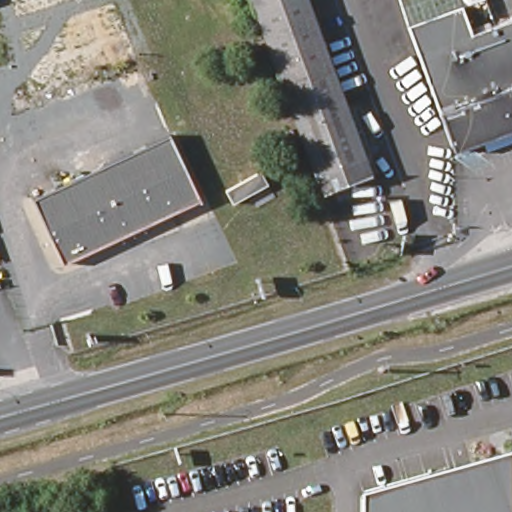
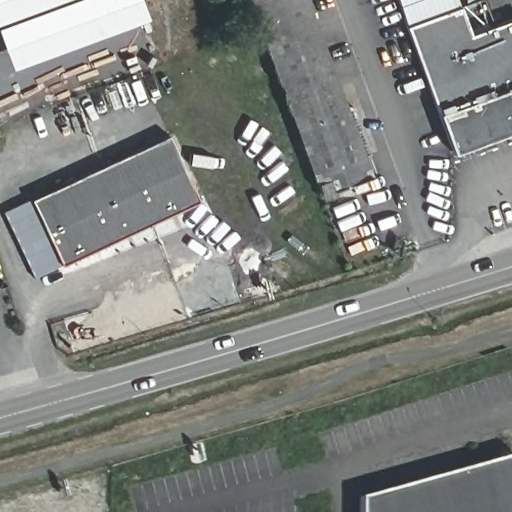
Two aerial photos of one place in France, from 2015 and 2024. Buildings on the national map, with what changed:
new [(0,36),(0,0),(140,0),(146,17),(11,67),(0,36)]
unchanged [(370,164),(323,181),(257,0),(311,0),(370,164)]
unchanged [(496,60),(505,85),(430,113),(404,27),(395,0),(457,0),(459,5),(467,32),(512,17),(512,54),(496,60)]
unchanged [(430,113),(505,85),(496,60),(512,54),(512,132),(450,156),(430,113)]
unchanged [(166,136),(198,201),(60,265),(30,199),(166,136)]
unchanged [(361,512),(361,495),(512,454),(512,512),(361,512)]

